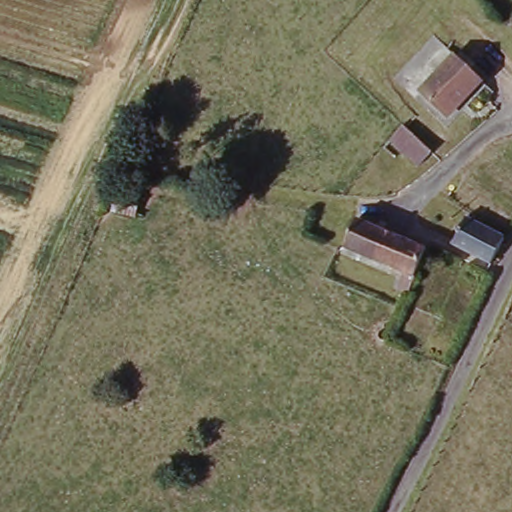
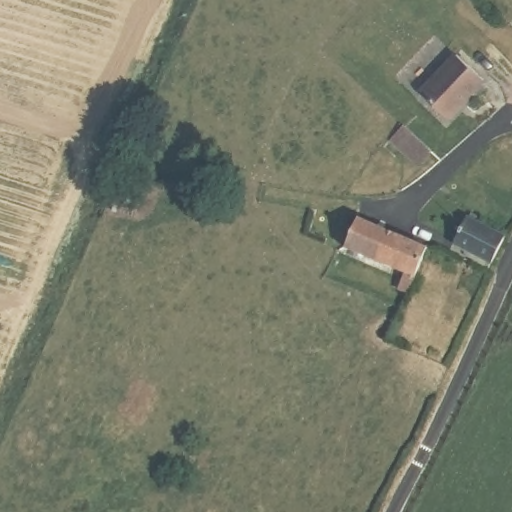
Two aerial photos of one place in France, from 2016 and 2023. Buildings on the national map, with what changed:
unchanged [(483,84),(449,122),(429,104),(423,97),(457,61),(465,67),(483,84)]
unchanged [(434,154),(421,167),(391,140),(405,126),(420,141),(432,152),(434,154)]
unchanged [(139,224),(111,217),(117,195),(141,199),(139,224)]
unchanged [(456,251),(468,223),(507,242),(493,269),(456,251)]
unchanged [(412,285),(366,264),(342,252),(356,224),(394,240),(426,255),(412,285)]

